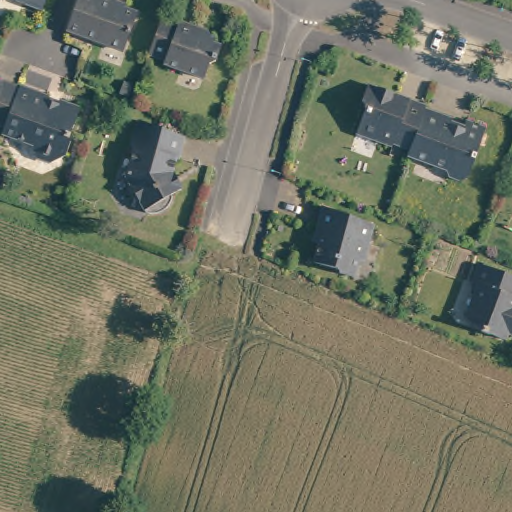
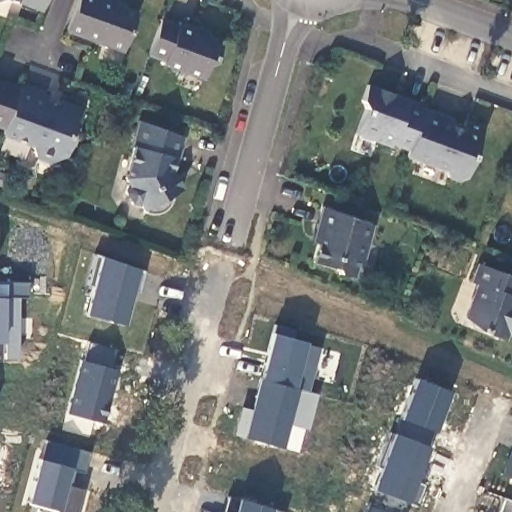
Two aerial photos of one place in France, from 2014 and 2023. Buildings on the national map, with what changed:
unchanged [(0,1),(0,0),(2,0),(0,1)]
unchanged [(40,10),(11,0),(43,0),(40,10)]
unchanged [(127,4),(125,10),(137,13),(122,54),(65,32),(77,0),(117,0),(127,4)]
unchanged [(178,25),(197,31),(210,35),(209,40),(214,41),(215,47),(221,50),(216,66),(207,68),(203,80),(164,65),(165,61),(147,55),(160,20),(177,26),(178,25)]
unchanged [(0,77),(5,79),(22,86),(7,126),(0,123),(0,77)]
unchanged [(408,151),(391,145),(389,149),(354,136),(362,109),(360,105),(366,85),(400,97),(408,100),(423,106),(422,109),(408,151)]
unchanged [(51,96),(50,100),(60,102),(61,100),(84,109),(72,139),(75,140),(70,153),(57,160),(40,154),(34,141),(5,131),(7,126),(22,86),(51,96)]
unchanged [(452,120),(450,125),(462,130),(465,121),(483,129),(466,179),(458,181),(446,178),(443,171),(406,158),(408,151),(422,109),(452,120)]
unchanged [(181,129),(173,150),(170,150),(170,170),(180,188),(167,195),(171,201),(170,206),(167,211),(162,215),(157,216),(151,217),(146,215),(137,199),(134,201),(125,198),(121,186),(122,180),(126,178),(122,171),(131,139),(128,137),(136,112),(181,129)]
unchanged [(370,226),(355,265),(348,267),(343,281),(331,277),(327,270),(308,263),(313,247),(307,244),(311,230),(321,209),(370,226)]
new [(92,286),(87,285),(95,254),(144,270),(138,292),(132,290),(124,323),(85,313),(92,286)]
unchanged [(507,332),(505,339),(480,330),(482,322),(467,316),(477,286),(472,285),(480,262),(512,274),(512,334),(507,332)]
new [(27,297),(17,297),(0,297),(0,281),(28,281),(27,297)]
new [(17,303),(17,358),(4,357),(5,342),(0,342),(0,297),(17,297),(17,303)]
new [(264,361),(269,363),(271,356),(266,355),(275,324),(295,330),(292,337),(306,341),(305,343),(319,346),(307,391),(260,378),(264,361)]
new [(81,360),(82,360),(88,340),(117,348),(111,367),(116,369),(102,422),(67,412),(81,360)]
new [(297,426),(286,423),(280,446),(236,435),(242,407),(253,410),(256,397),(255,396),(260,378),(307,391),(316,393),(310,415),(306,428),(297,426)]
new [(416,378),(450,391),(442,414),(443,415),(437,431),(433,430),(427,445),(395,433),(416,378)]
new [(426,483),(417,505),(373,488),(381,467),(377,466),(391,431),(395,433),(427,445),(432,447),(425,464),(419,480),(426,483)]
new [(46,439),(90,451),(85,473),(75,470),(71,485),(85,489),(78,512),(57,512),(58,510),(27,501),(39,458),(41,458),(46,439)]
new [(512,450),(512,479),(502,475),(512,450)]
new [(285,511),(284,512),(224,512),(228,496),(285,511)]
new [(396,512),(365,512),(369,502),(396,512)]

